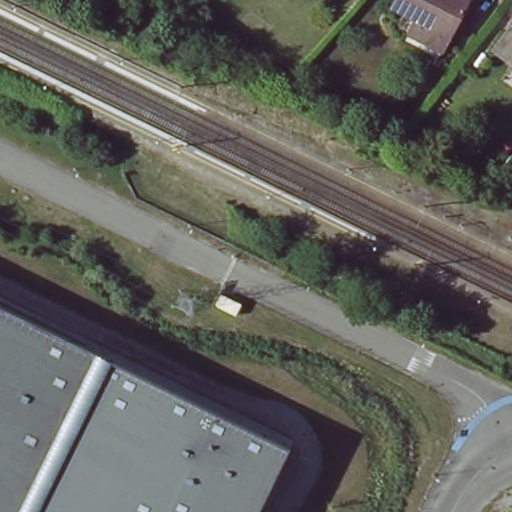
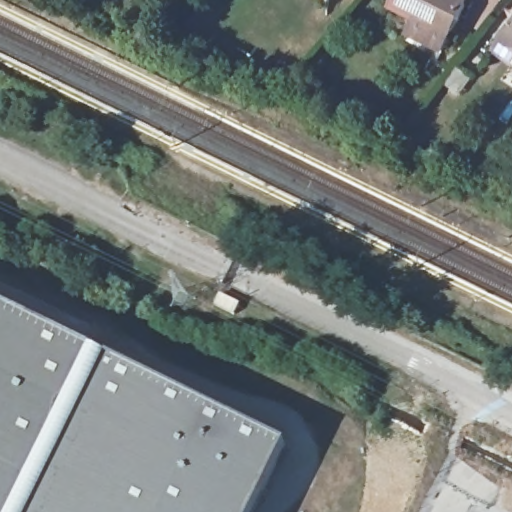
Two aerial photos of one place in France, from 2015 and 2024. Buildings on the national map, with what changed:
unchanged [(391,0),(465,0),(449,33),(390,4),(391,0)]
unchanged [(487,51),(505,25),(512,30),(512,59),(507,66),(487,51)]
unchanged [(92,350),(12,512),(0,512),(0,306),(92,350)]
unchanged [(288,446),(255,512),(32,512),(109,357),(288,446)]

